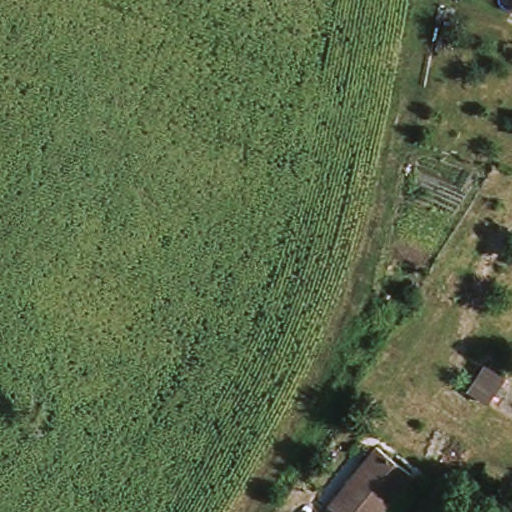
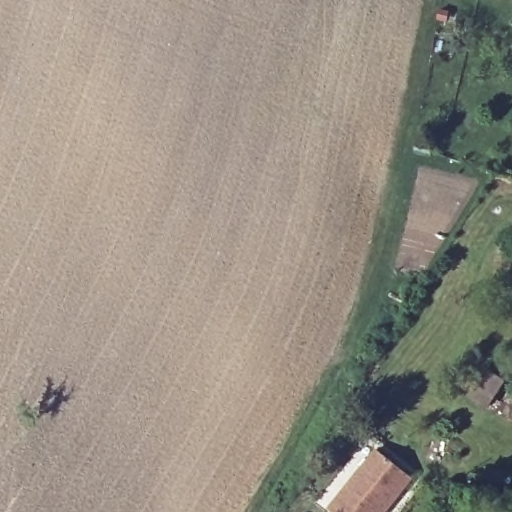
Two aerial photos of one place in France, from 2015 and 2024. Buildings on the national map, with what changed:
unchanged [(508,380),(488,407),(468,393),(487,365),(508,380)]
unchanged [(415,472),(383,512),(338,512),(332,507),(380,446),(415,472)]

